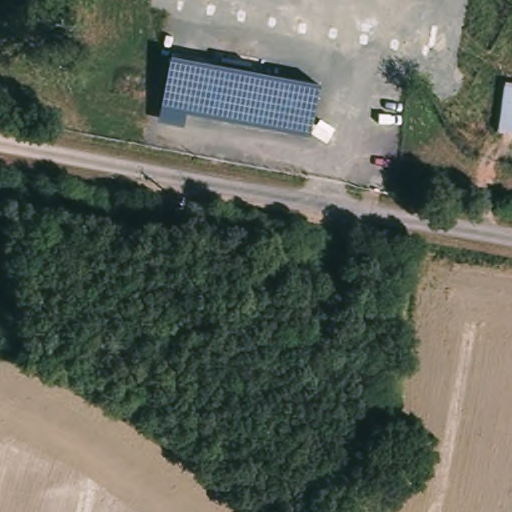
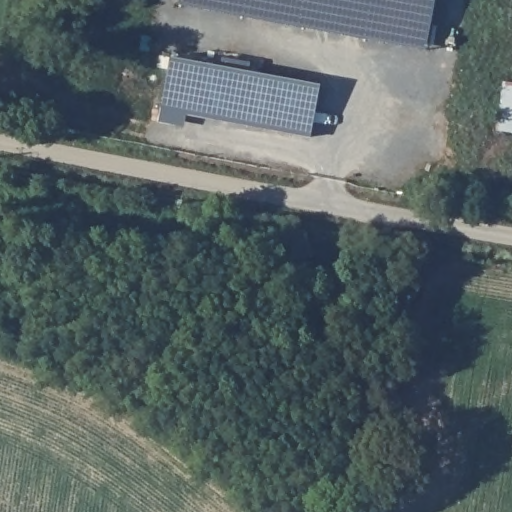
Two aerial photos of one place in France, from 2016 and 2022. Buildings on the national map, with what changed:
new [(420,42),(207,0),(428,0),(420,42)]
unchanged [(173,56),(323,83),(312,134),(164,107),(173,56)]
unchanged [(503,83),(512,84),(512,136),(497,134),(503,83)]

